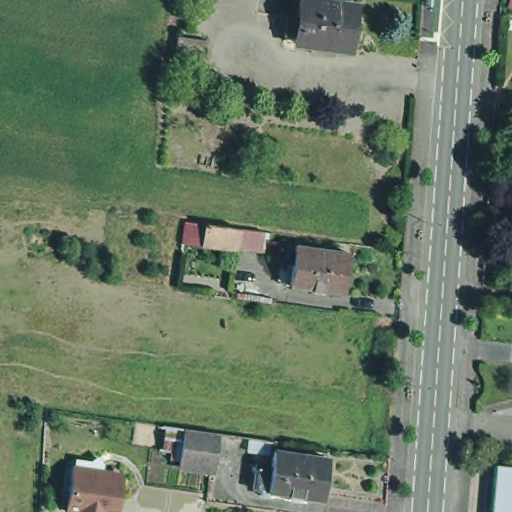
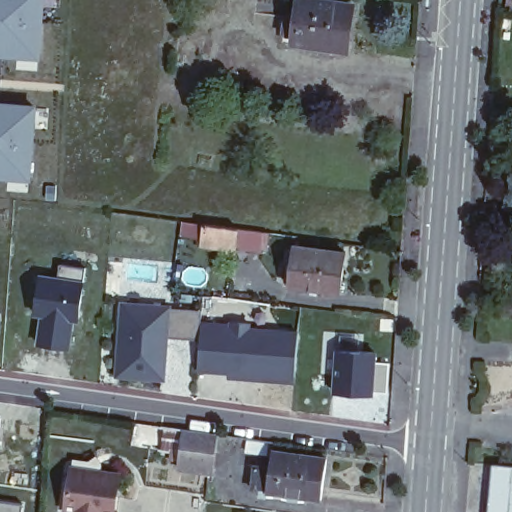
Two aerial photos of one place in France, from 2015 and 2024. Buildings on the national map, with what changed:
new [(0,55),(0,0),(40,0),(35,57),(0,55)]
unchanged [(333,40),(333,43),(316,40),(316,38),(298,36),(300,30),(292,28),(295,10),(302,11),(303,0),(357,0),(352,43),(333,40)]
demolished [(205,39),(203,54),(175,50),(176,35),(205,39)]
new [(25,177),(0,176),(0,107),(30,108),(25,177)]
unchanged [(253,230),(250,247),(207,241),(209,224),(253,230)]
unchanged [(315,283),(317,278),(294,274),(298,235),(350,243),(346,282),(325,279),(325,285),(315,283)]
new [(37,272),(56,275),(58,261),(85,266),(80,308),(70,349),(33,344),(38,316),(30,314),(37,272)]
new [(124,305),(203,311),(202,321),(201,341),(167,338),(164,379),(118,376),(124,305)]
new [(297,331),(293,385),(227,379),(227,373),(199,370),(201,341),(202,321),(297,331)]
new [(374,353),(374,363),(388,364),(387,393),(372,392),(372,396),(331,394),(332,351),(374,353)]
unchanged [(219,433),(215,470),(182,467),(187,428),(219,433)]
unchanged [(297,492),(279,489),(278,498),(270,496),(270,488),(262,488),(267,465),(280,467),(281,455),(257,451),(258,438),(285,441),(283,451),(337,459),(331,497),(310,494),(308,502),(295,500),(297,492)]
unchanged [(492,463),(512,465),(512,512),(488,512),(492,463)]
unchanged [(70,483),(72,468),(120,475),(118,489),(115,512),(76,512),(76,510),(67,509),(67,512),(66,512),(70,483)]
new [(20,505),(20,512),(0,512),(0,502),(20,505)]

